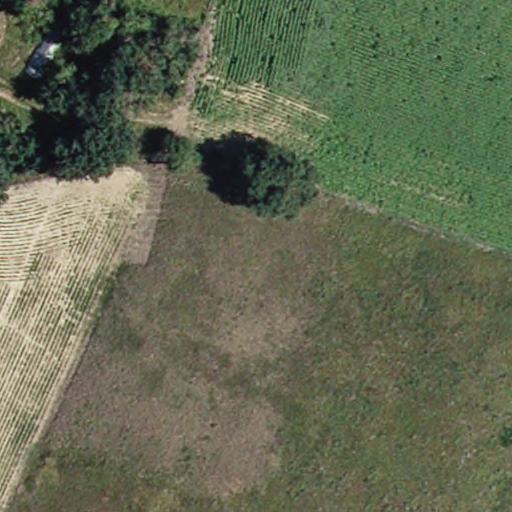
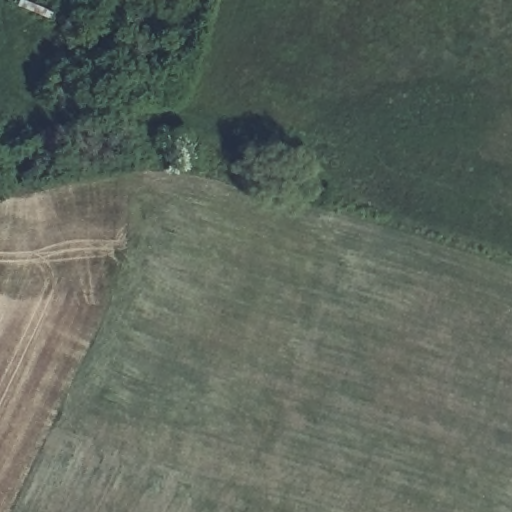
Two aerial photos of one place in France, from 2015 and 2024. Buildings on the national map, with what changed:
unchanged [(57,62),(87,10),(114,23),(87,71),(85,77),(57,62)]

